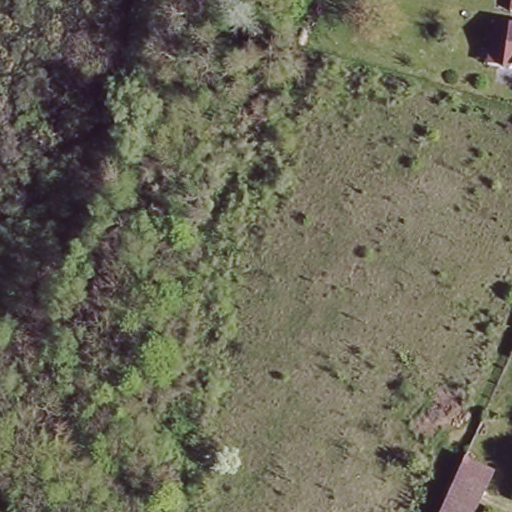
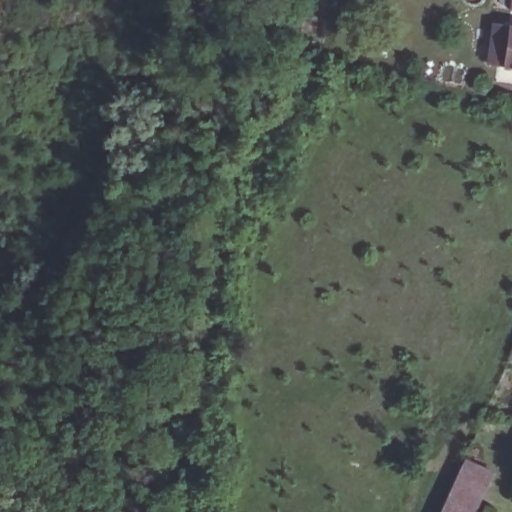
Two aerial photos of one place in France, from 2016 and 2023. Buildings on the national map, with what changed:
unchanged [(505,68),(507,28),(512,28),(512,68),(505,68)]
unchanged [(512,349),(512,359),(509,357),(512,349)]
unchanged [(468,457),(493,469),(473,512),(444,512),(468,457)]

